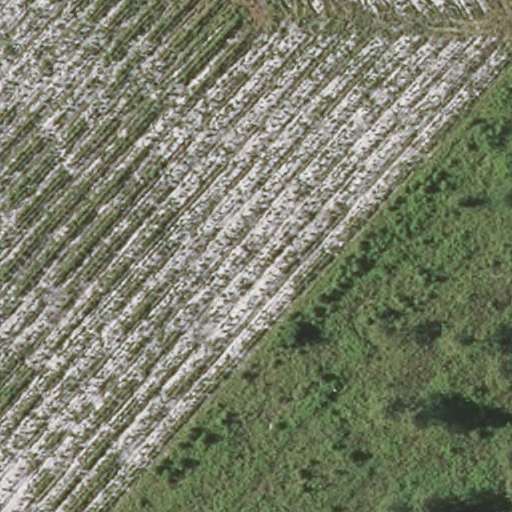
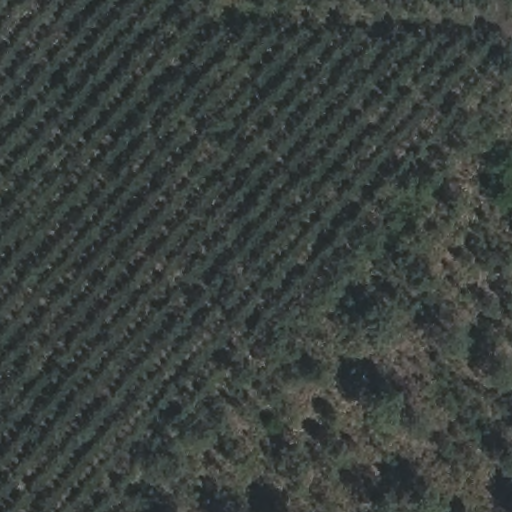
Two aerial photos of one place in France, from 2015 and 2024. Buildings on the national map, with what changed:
[]

